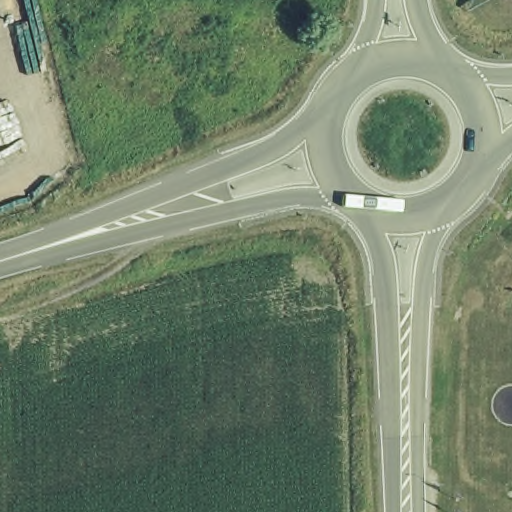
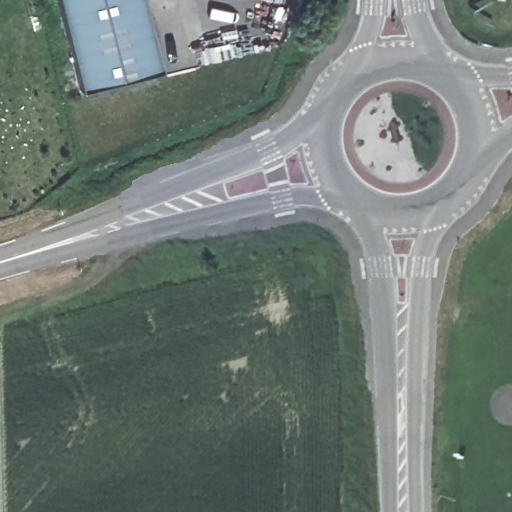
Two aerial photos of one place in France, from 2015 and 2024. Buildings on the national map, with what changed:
new [(80,90),(58,0),(142,0),(161,70),(80,90)]

